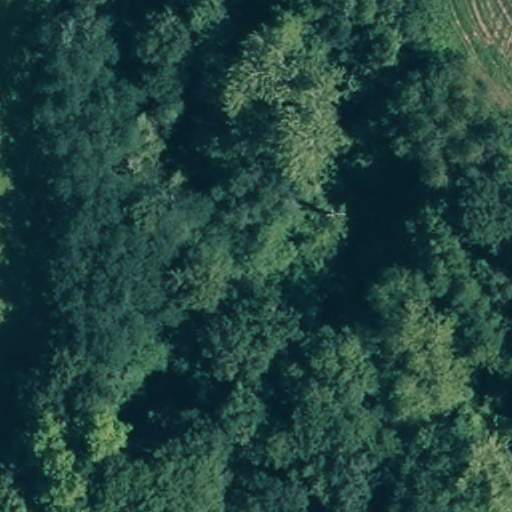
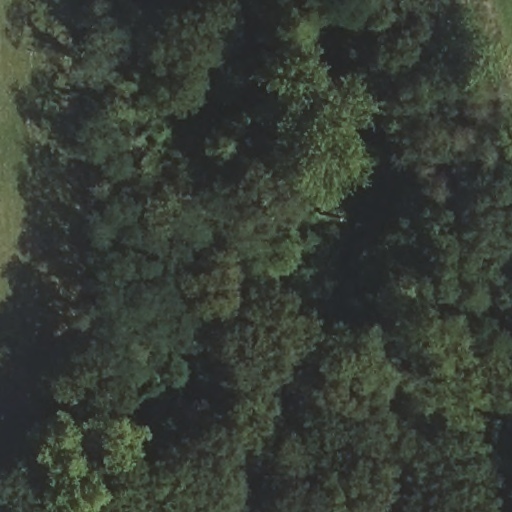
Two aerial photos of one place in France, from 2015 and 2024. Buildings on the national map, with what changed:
[]

